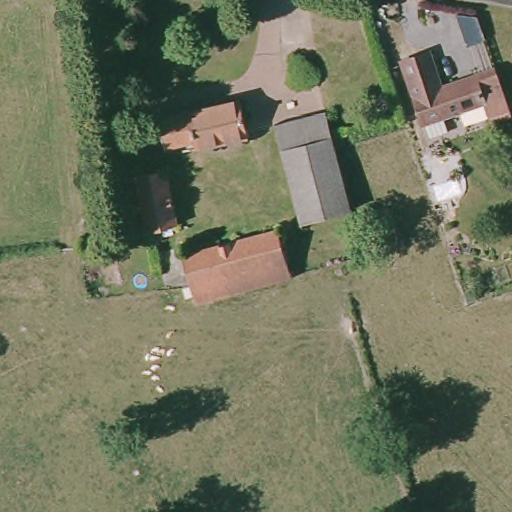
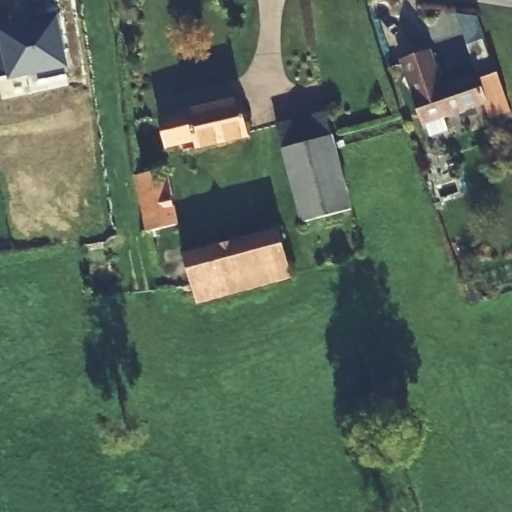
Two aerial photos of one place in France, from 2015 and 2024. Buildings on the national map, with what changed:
new [(70,68),(9,80),(8,75),(0,78),(0,36),(0,26),(59,14),(70,68)]
unchanged [(510,114),(492,120),(487,107),(445,121),(449,135),(430,142),(425,127),(425,128),(402,66),(430,56),(442,91),(497,72),(510,114)]
unchanged [(241,103),(250,140),(197,153),(195,145),(166,152),(160,122),(241,103)]
unchanged [(302,221),(277,123),(317,113),(325,111),(351,209),(325,216),(302,221)]
unchanged [(136,177),(136,175),(167,168),(177,223),(147,231),(136,177)]
unchanged [(206,300),(197,303),(192,285),(184,256),(184,254),(279,228),(293,276),(206,300)]

